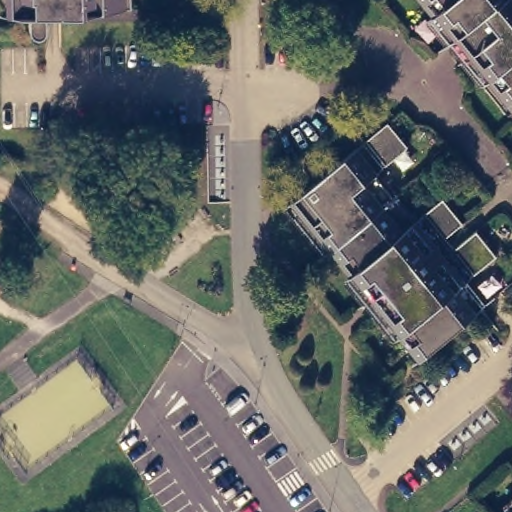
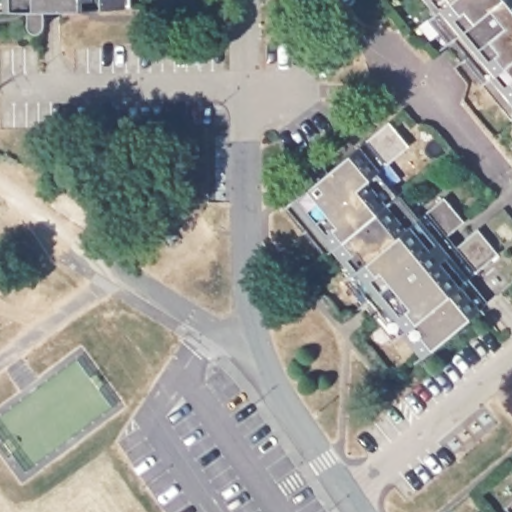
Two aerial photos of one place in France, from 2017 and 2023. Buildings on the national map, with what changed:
unchanged [(127,9),(45,11),(44,18),(44,25),(43,29),(40,32),(36,33),(32,32),(29,30),(27,25),(27,12),(27,11),(0,11),(0,0),(127,0),(127,9)]
unchanged [(487,72),(467,48),(484,34),(470,17),(453,31),(432,6),(440,0),(512,0),(512,85),(495,65),(487,72)]
unchanged [(409,142),(377,169),(416,217),(444,193),(464,218),(420,255),(429,266),(478,225),(498,249),(465,277),(485,300),(422,352),(404,329),(399,332),(379,307),(401,289),(392,278),(370,296),(349,272),(359,264),(340,241),(330,249),(290,201),(315,179),(312,175),(307,169),(305,166),(305,162),(307,159),(310,157),(313,156),(317,157),(320,159),(327,169),(328,169),(389,118),(409,142)]
unchanged [(512,507),(512,512),(509,512),(508,511),(512,507)]

